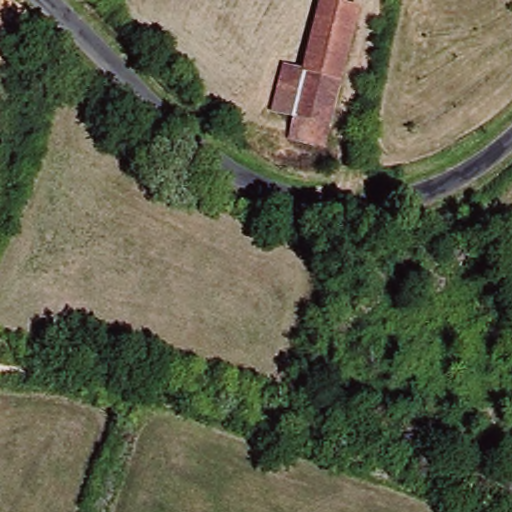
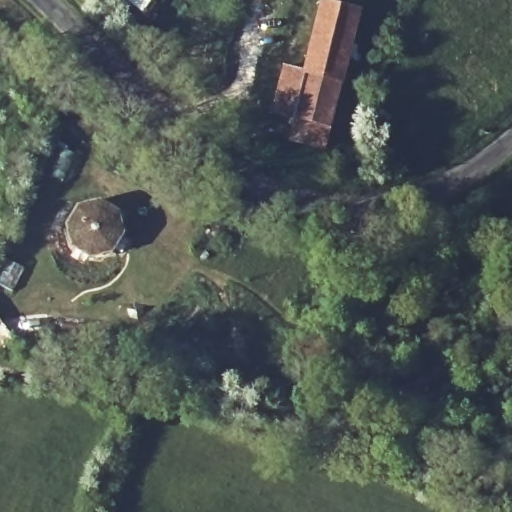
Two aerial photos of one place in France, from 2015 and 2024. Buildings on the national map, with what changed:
new [(125,0),(154,0),(144,14),(125,0)]
unchanged [(344,81),(333,129),(326,152),(289,145),(292,123),(271,115),(283,67),(300,71),(319,4),(362,14),(344,81)]
new [(79,202),(101,199),(121,211),(126,231),(113,254),(100,258),(91,260),(70,249),(68,244),(63,224),(79,202)]
new [(25,267),(12,292),(0,286),(0,272),(7,257),(25,267)]

